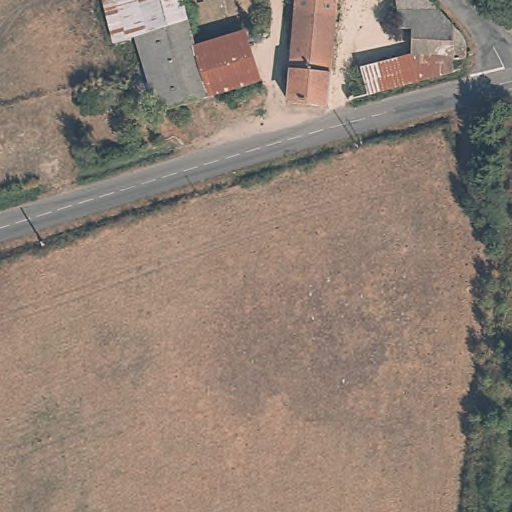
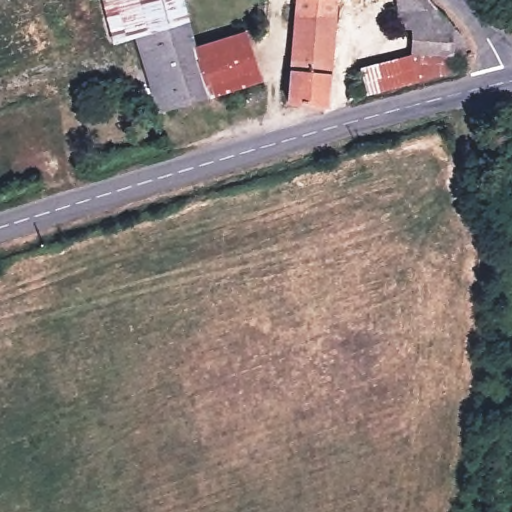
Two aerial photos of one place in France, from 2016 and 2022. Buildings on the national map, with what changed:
unchanged [(161,111),(136,35),(115,42),(102,0),(142,0),(150,25),(179,16),(187,14),(197,46),(213,95),(203,98),(161,111)]
unchanged [(187,14),(179,16),(150,25),(142,0),(182,0),(187,14)]
unchanged [(298,0),(334,0),(326,100),(288,99),(298,0)]
unchanged [(460,70),(450,72),(451,54),(407,52),(407,28),(394,29),(390,0),(430,0),(465,38),(460,70)]
unchanged [(197,46),(246,30),(261,80),(213,95),(197,46)]
unchanged [(361,97),(352,70),(407,52),(451,54),(450,72),(361,97)]

